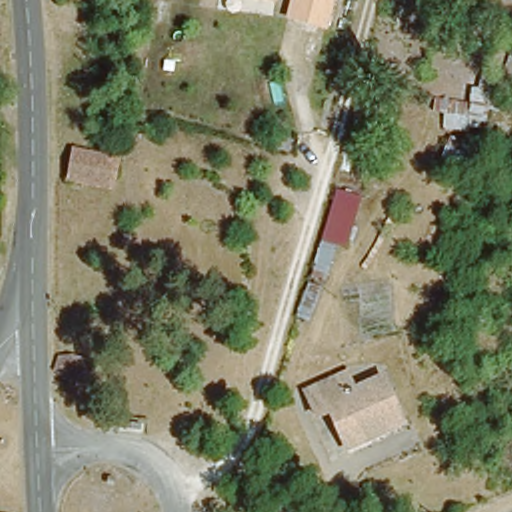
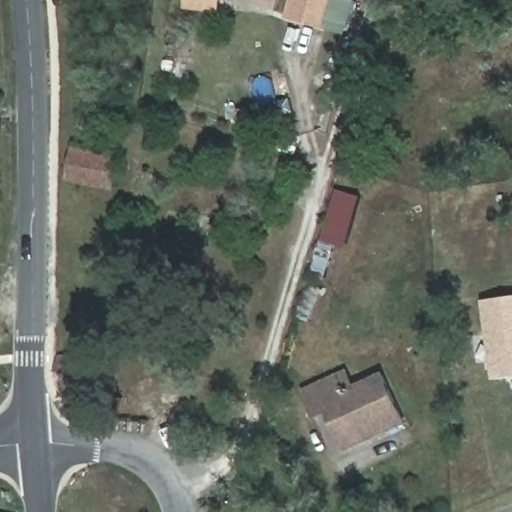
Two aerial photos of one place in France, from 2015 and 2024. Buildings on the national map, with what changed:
unchanged [(184,7),(185,0),(216,0),(215,12),(184,7)]
unchanged [(289,19),(293,0),(336,0),(329,29),(289,19)]
unchanged [(488,102),(480,129),(439,118),(440,92),(488,102)]
unchanged [(478,144),(469,164),(442,157),(448,136),(478,144)]
unchanged [(110,185),(63,177),(68,150),(115,159),(110,185)]
unchanged [(339,248),(334,255),(317,251),(334,187),(360,194),(346,249),(339,248)]
new [(481,300),(512,296),(512,378),(492,380),(481,300)]
unchanged [(56,374),(63,352),(67,353),(86,359),(80,381),(67,378),(56,374)]
unchanged [(346,370),(358,391),(385,378),(404,416),(362,435),(363,439),(341,450),(322,406),(314,412),(305,389),(346,370)]

